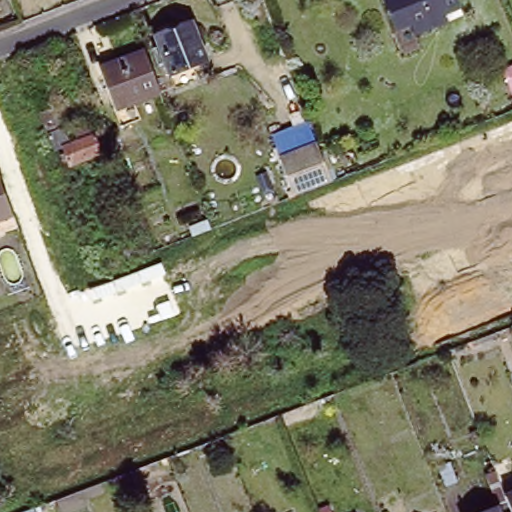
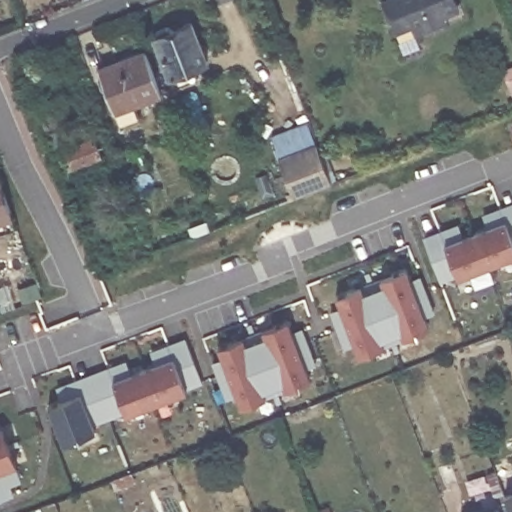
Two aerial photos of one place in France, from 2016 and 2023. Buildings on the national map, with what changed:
unchanged [(442,19),(412,32),(407,20),(390,27),(379,0),(444,0),(436,4),(442,19)]
unchanged [(170,32),(172,35),(192,27),(207,67),(172,80),(157,41),(159,40),(157,37),(159,34),(168,31),(170,32)]
unchanged [(114,111),(99,70),(145,52),(160,94),(114,111)]
unchanged [(60,91),(45,97),(37,75),(52,69),(60,91)]
unchanged [(70,107),(78,127),(70,130),(77,146),(84,142),(80,133),(97,127),(108,156),(77,167),(70,149),(60,152),(47,116),(70,107)]
unchanged [(294,195),(278,156),(270,134),(308,120),(317,141),(331,181),(294,195)]
unchanged [(13,217),(0,222),(0,183),(13,217)]
new [(440,283),(422,237),(458,223),(462,237),(487,227),(482,215),(512,203),(512,258),(458,277),(440,283)]
new [(404,338),(384,346),(359,357),(335,295),(362,284),(365,291),(382,283),(380,277),(407,267),(430,328),(404,338)]
new [(307,367),(312,379),(267,397),(240,407),(236,395),(225,398),(212,361),(220,357),(215,346),(242,335),(245,342),(265,335),(262,328),(287,318),(294,331),(302,327),(315,363),(307,367)]
new [(202,381),(187,387),(189,392),(127,415),(94,427),(95,432),(62,444),(48,403),(60,399),(55,386),(127,359),(132,372),(154,362),(150,351),(185,336),(202,381)]
new [(0,501),(0,423),(1,427),(4,426),(18,465),(15,466),(21,482),(11,485),(15,496),(0,501)]
unchanged [(495,506),(489,492),(499,487),(502,496),(508,512),(478,512),(495,506)]
unchanged [(512,492),(512,512),(508,512),(502,496),(512,492)]

